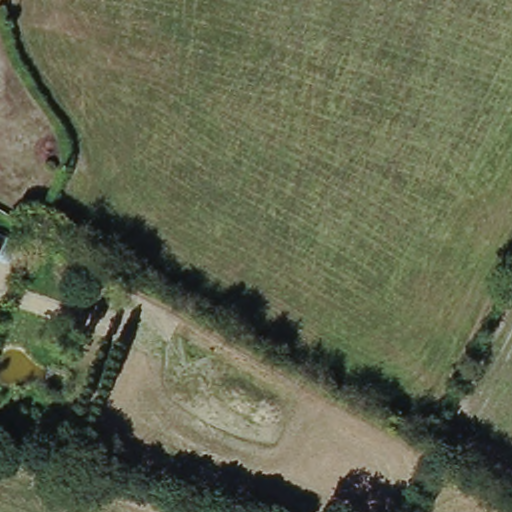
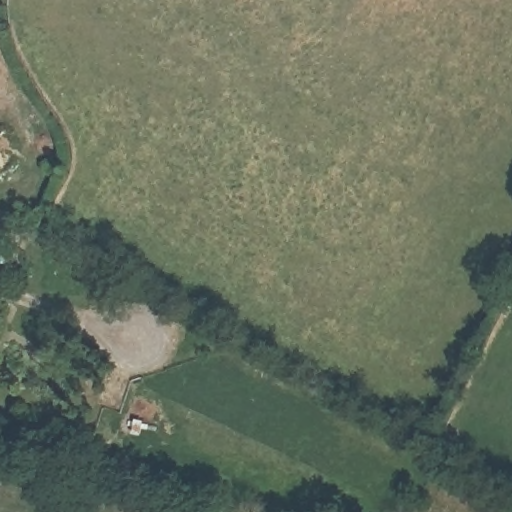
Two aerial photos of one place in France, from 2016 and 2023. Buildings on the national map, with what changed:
unchanged [(15,248),(7,271),(0,268),(0,242),(15,248)]

